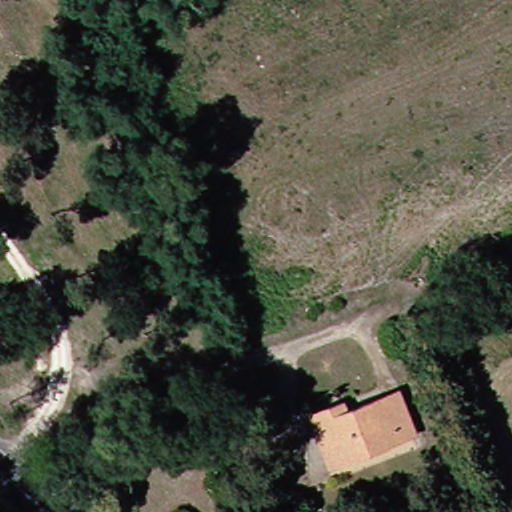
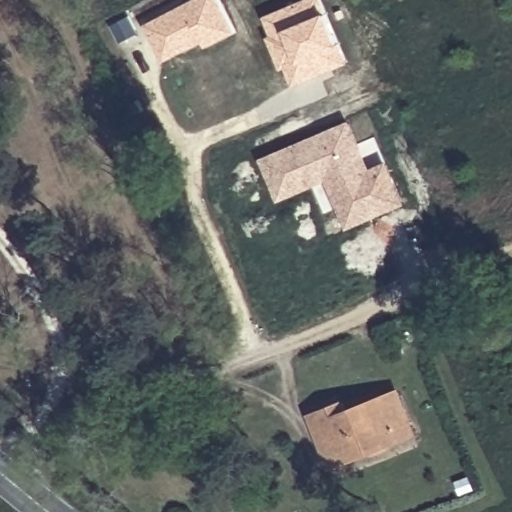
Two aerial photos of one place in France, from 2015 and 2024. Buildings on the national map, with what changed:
new [(163,62),(144,25),(193,0),(221,0),(234,30),(163,62)]
new [(262,19),(303,0),(322,0),(348,59),(292,85),(262,19)]
new [(370,168),(387,161),(406,205),(346,230),(325,181),(277,202),(260,158),(350,120),(370,168)]
unchanged [(337,401),(341,409),(392,390),(409,433),(365,448),(358,435),(333,445),(315,410),(337,401)]
unchanged [(305,413),(315,410),(333,445),(358,435),(365,448),(322,463),(305,413)]

